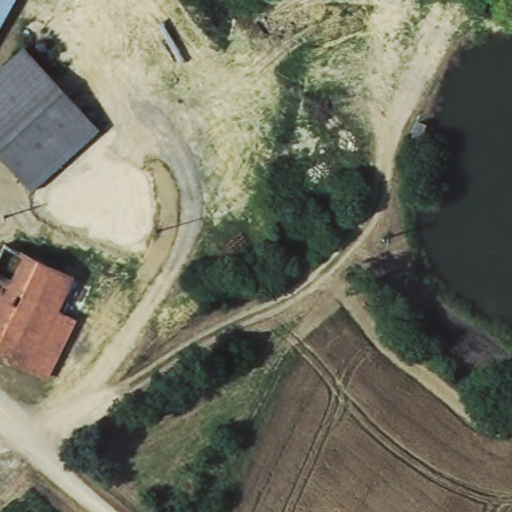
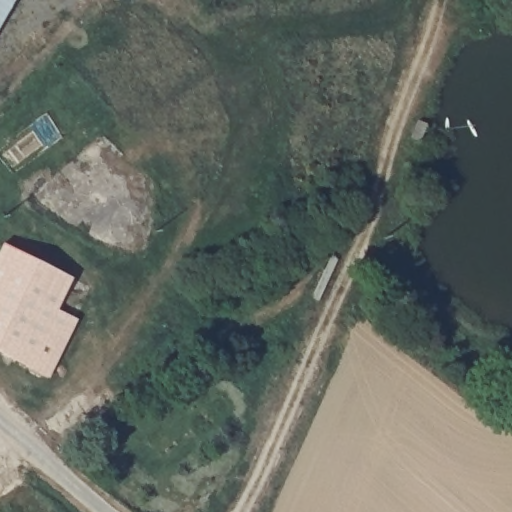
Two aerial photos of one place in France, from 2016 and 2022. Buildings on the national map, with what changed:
unchanged [(11,0),(0,21),(0,0),(11,0)]
demolished [(21,51),(92,134),(25,188),(0,159),(0,69),(21,51)]
unchanged [(70,322),(72,324),(49,379),(0,356),(0,227),(94,273),(70,322)]

